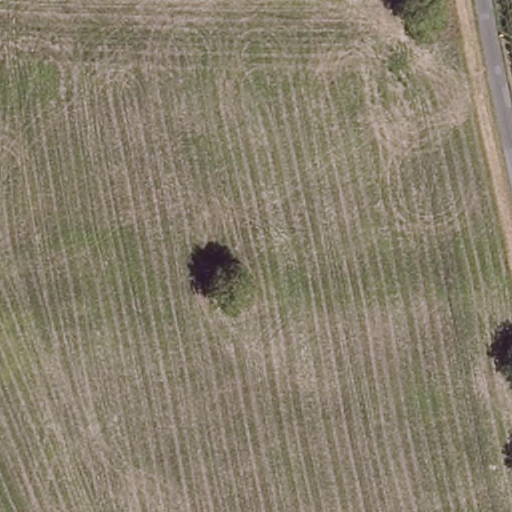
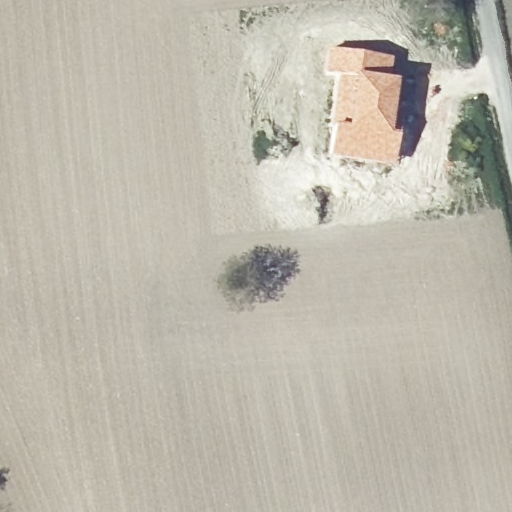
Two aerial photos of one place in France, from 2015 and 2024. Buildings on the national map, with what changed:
new [(326,48),(391,55),(388,79),(395,80),(391,133),(395,134),(390,166),(326,155),(334,76),(322,75),(326,48)]

